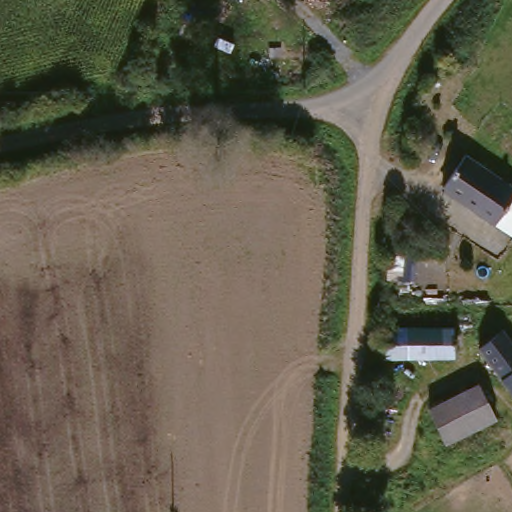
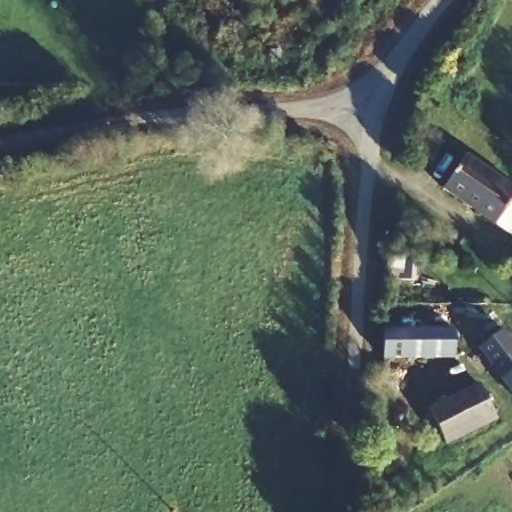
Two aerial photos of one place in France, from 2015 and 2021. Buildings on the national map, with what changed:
unchanged [(443,185),(466,155),(512,188),(512,198),(493,222),(443,185)]
unchanged [(432,367),(432,352),(382,351),(383,321),(452,323),(452,352),(449,352),(449,367),(432,367)]
unchanged [(500,335),(512,352),(512,403),(474,352),(500,335)]
unchanged [(493,417),(447,442),(430,408),(475,383),(493,417)]

